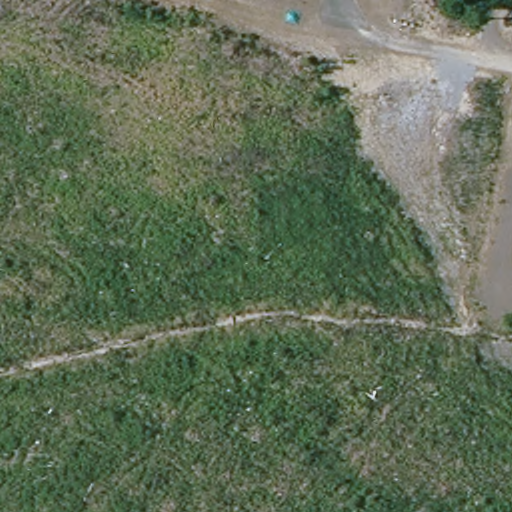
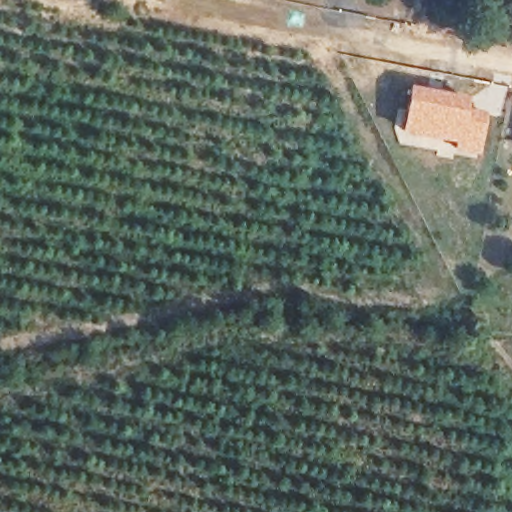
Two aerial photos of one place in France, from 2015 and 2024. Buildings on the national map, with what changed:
new [(412,89),(466,99),(463,111),(487,115),(480,151),(456,147),(461,120),(446,118),(442,138),(403,130),(412,89)]

